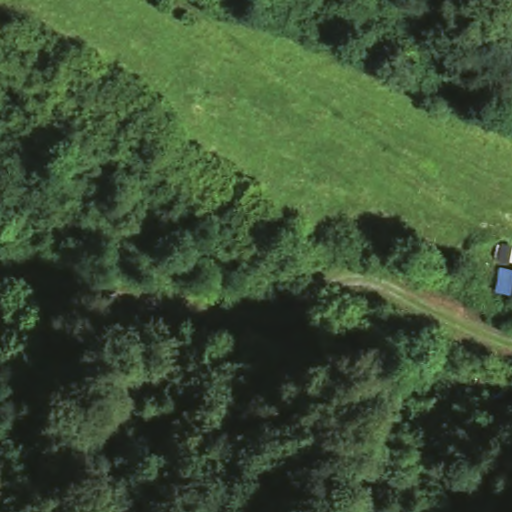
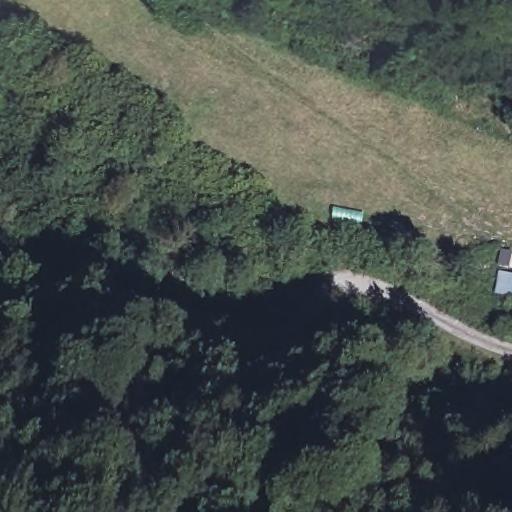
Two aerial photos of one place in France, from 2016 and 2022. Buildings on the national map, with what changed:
unchanged [(512,270),(512,296),(493,291),(498,267),(512,270)]

